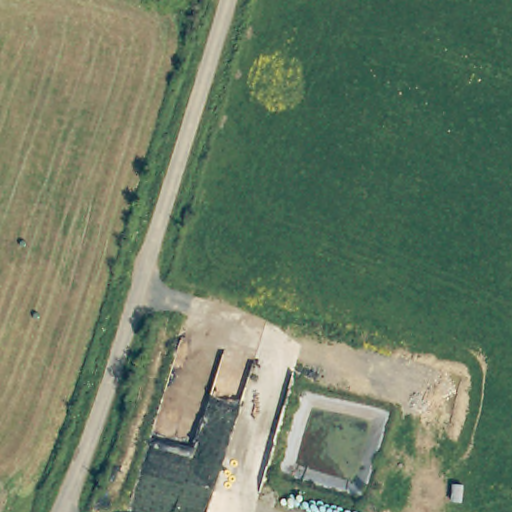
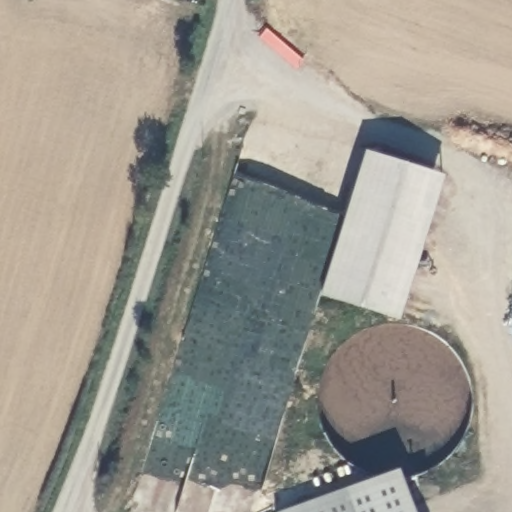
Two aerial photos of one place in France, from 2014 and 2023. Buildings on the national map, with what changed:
new [(442,176),(398,319),(318,296),(364,150),(442,176)]
new [(345,489),(354,512),(276,512),(345,489)]

